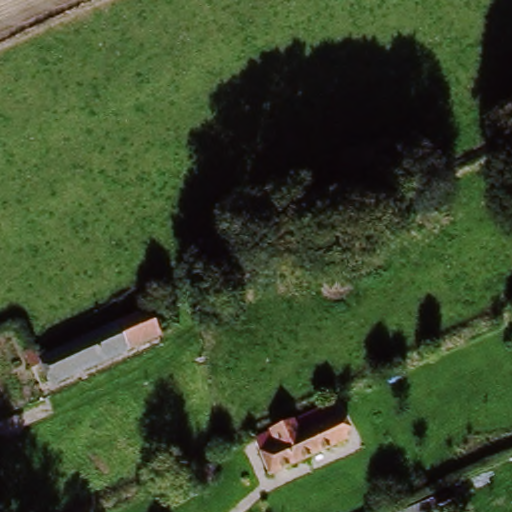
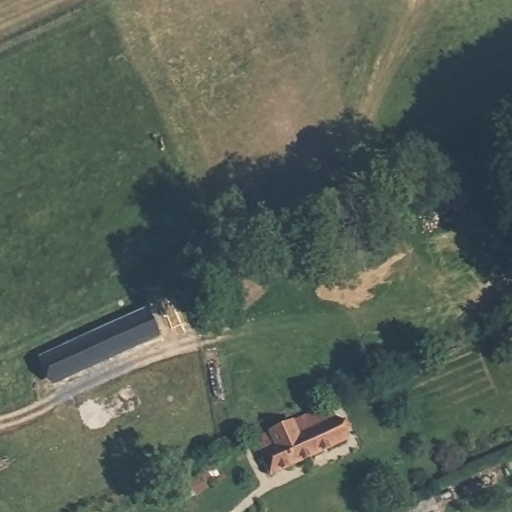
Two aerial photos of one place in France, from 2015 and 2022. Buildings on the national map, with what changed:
unchanged [(368,252),(332,268),(326,254),(362,237),(368,252)]
unchanged [(149,345),(49,389),(39,362),(138,320),(149,345)]
unchanged [(252,443),(330,409),(336,423),(259,456),(252,443)]
unchanged [(345,445),(270,479),(259,456),(336,423),(345,445)]
unchanged [(233,471),(207,485),(210,490),(184,505),(172,486),(226,455),(233,471)]

